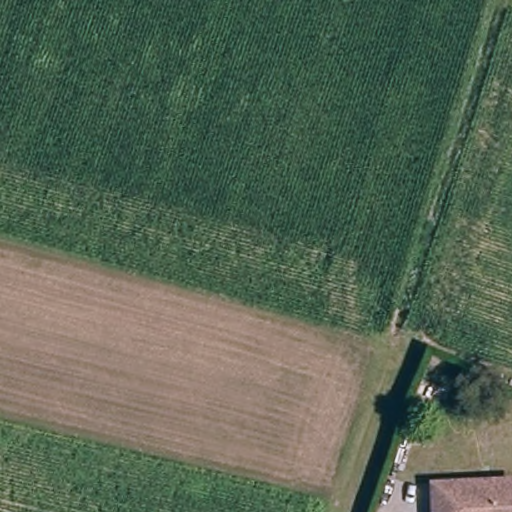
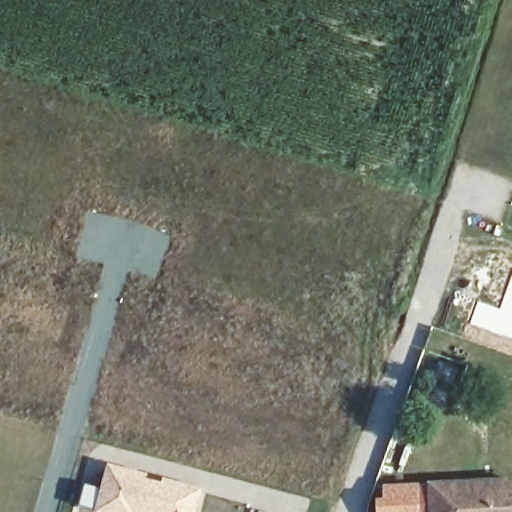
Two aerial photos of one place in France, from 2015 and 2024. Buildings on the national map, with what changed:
new [(500,309),(512,278),(512,339),(470,324),(478,302),(500,309)]
new [(84,484),(100,488),(107,463),(202,488),(196,512),(94,512),(94,511),(79,507),(84,484)]
unchanged [(430,481),(508,480),(507,512),(431,512),(430,481)]
new [(384,499),(383,485),(420,484),(430,482),(431,512),(378,512),(377,500),(384,499)]

